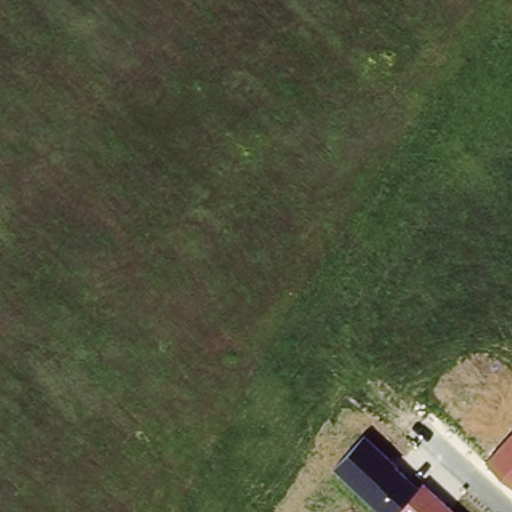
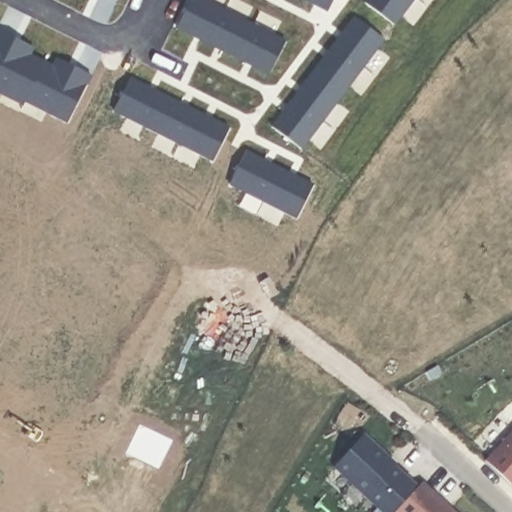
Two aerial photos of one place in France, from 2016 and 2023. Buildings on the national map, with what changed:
new [(118,1),(116,0),(118,0),(118,1)]
new [(192,0),(203,0),(286,42),(270,75),(177,28),(192,0)]
new [(315,6),(304,0),(333,0),(332,1),(327,12),(315,6)]
new [(368,0),(414,0),(395,26),(365,3),(368,0)]
new [(355,17),(384,40),(301,150),(272,128),(355,17)]
new [(10,45),(71,75),(75,67),(92,76),(68,123),(51,114),(53,109),(27,97),(26,98),(3,87),(0,92),(0,35),(12,41),(10,45)]
new [(130,79),(230,129),(213,161),(114,111),(130,79)]
new [(246,152),(313,186),(297,219),(230,185),(246,152)]
unchanged [(485,461),(512,430),(512,484),(485,461)]
unchanged [(365,431),(457,512),(385,512),(332,467),(365,431)]

